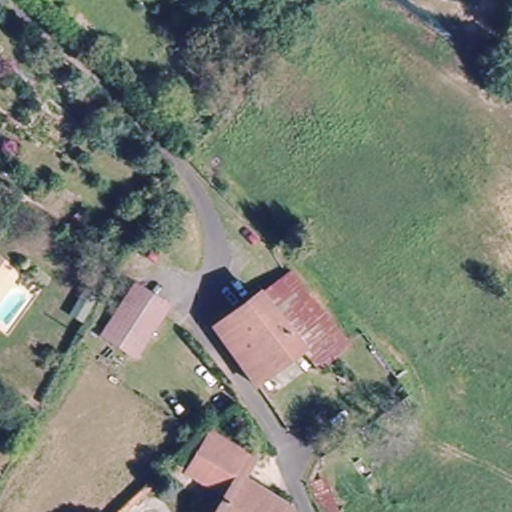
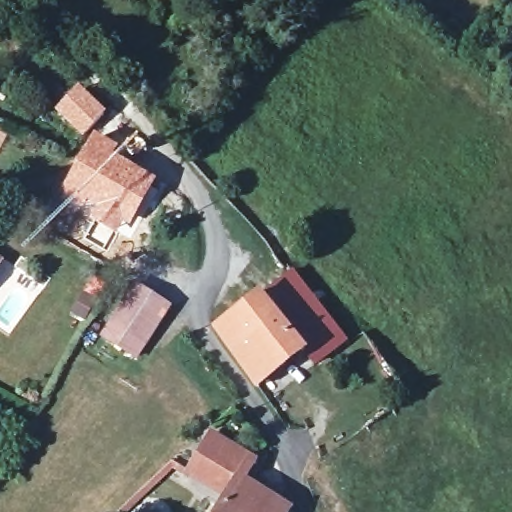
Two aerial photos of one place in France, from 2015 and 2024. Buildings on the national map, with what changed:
unchanged [(512,28),(512,59),(506,67),(488,52),(503,34),(506,36),(512,28)]
new [(78,83),(106,111),(83,136),(54,108),(78,83)]
new [(94,134),(120,148),(116,154),(158,178),(129,226),(124,223),(117,233),(56,193),(94,134)]
unchanged [(0,201),(0,185),(19,197),(12,208),(0,201)]
unchanged [(309,359),(298,341),(255,289),(287,266),(343,341),(309,359)]
new [(94,275),(108,284),(84,321),(68,311),(94,275)]
unchanged [(136,357),(103,335),(135,284),(169,307),(136,357)]
unchanged [(298,341),(249,377),(210,323),(255,289),(298,341)]
unchanged [(224,496),(184,472),(207,436),(247,460),(251,463),(239,482),(282,509),(280,512),(214,512),(224,496)]
unchanged [(314,490),(329,485),(338,512),(322,512),(314,490)]

